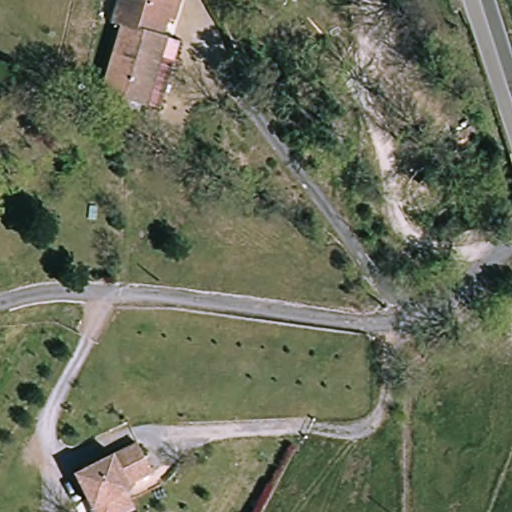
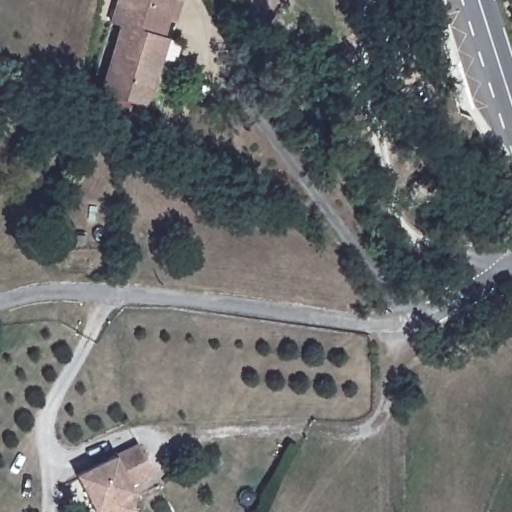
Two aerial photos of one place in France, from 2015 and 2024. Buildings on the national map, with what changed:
unchanged [(159,51),(163,52),(163,54),(145,118),(99,106),(122,21),(118,20),(124,0),(185,0),(175,35),(167,33),(164,32),(159,51)]
unchanged [(95,512),(94,510),(77,474),(139,446),(153,476),(129,486),(132,493),(126,496),(133,512),(132,512),(95,512)]

